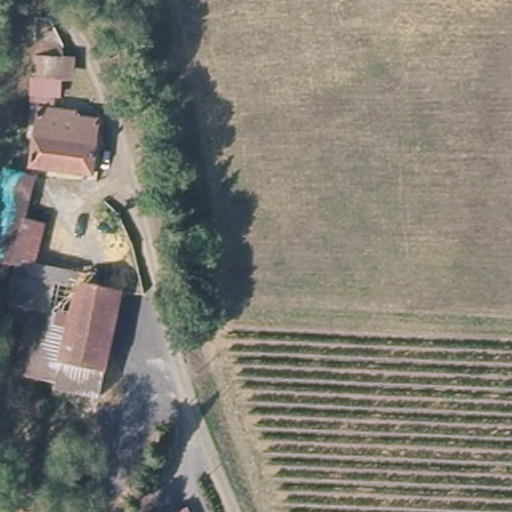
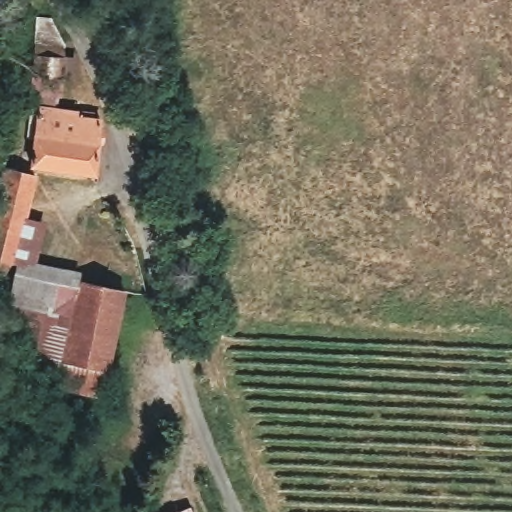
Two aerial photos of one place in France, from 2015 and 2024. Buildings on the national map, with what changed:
unchanged [(60,34),(60,90),(35,91),(35,32),(60,34)]
unchanged [(95,118),(87,167),(30,155),(37,107),(95,118)]
unchanged [(15,255),(5,254),(0,272),(0,183),(3,166),(30,171),(15,255)]
unchanged [(102,394),(0,375),(0,362),(15,266),(120,287),(102,394)]
unchanged [(184,512),(158,512),(179,501),(184,512)]

